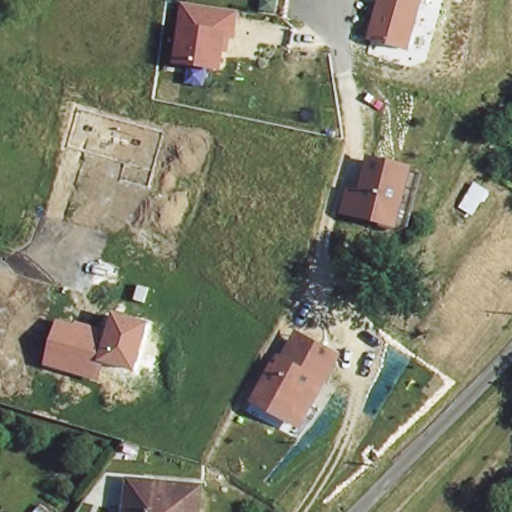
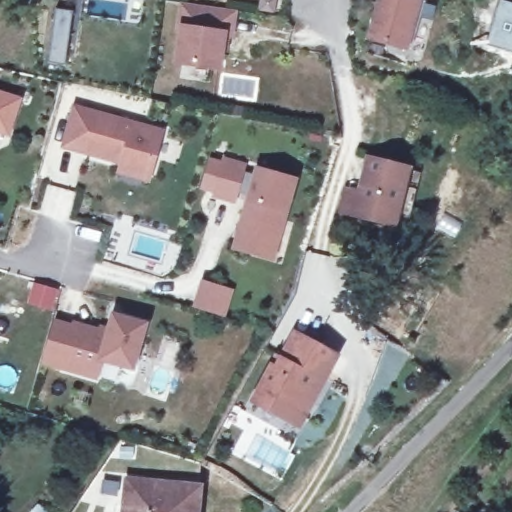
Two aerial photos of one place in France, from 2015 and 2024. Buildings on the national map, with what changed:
unchanged [(409,50),(368,40),(378,0),(421,0),(409,50)]
unchanged [(218,68),(178,61),(183,7),(232,14),(227,36),(220,36),(218,68)]
new [(23,98),(10,138),(0,135),(0,91),(23,98)]
new [(120,165),(61,149),(72,104),(164,129),(149,183),(117,174),(120,165)]
unchanged [(397,231),(338,216),(344,185),(358,189),(367,154),(412,166),(397,231)]
new [(246,203),(247,197),(238,194),(235,204),(212,198),(222,158),(246,164),(244,172),(252,174),(254,168),(298,178),(287,213),(279,243),(236,232),(246,203)]
unchanged [(72,324),(74,320),(106,328),(111,313),(147,323),(134,371),(104,364),(97,380),(41,364),(54,319),(72,324)]
unchanged [(302,432),(247,403),(272,353),(278,355),(291,330),(340,357),(302,432)]
unchanged [(199,484),(197,512),(127,512),(129,480),(199,484)]

